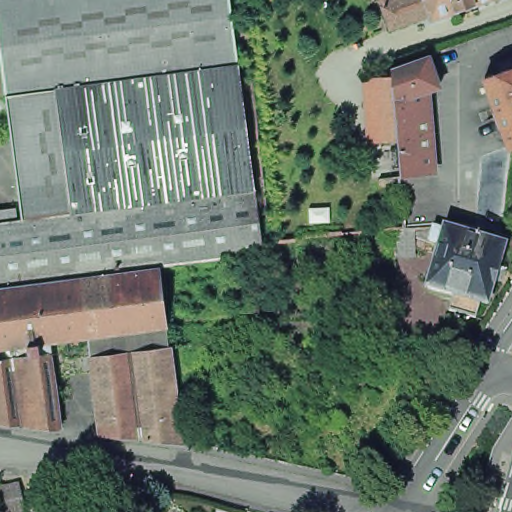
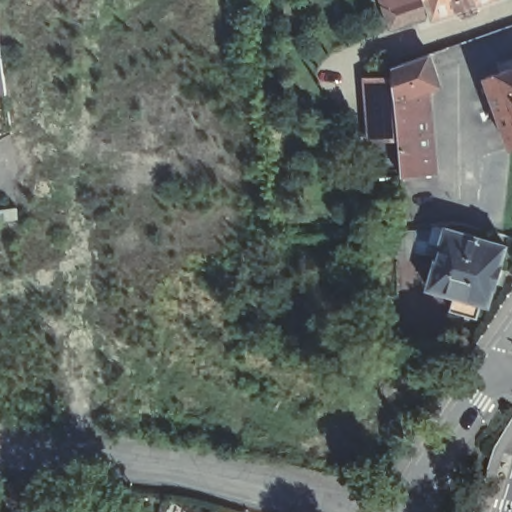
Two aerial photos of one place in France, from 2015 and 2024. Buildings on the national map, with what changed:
demolished [(240,69),(60,94),(10,101),(10,100),(7,100),(0,100),(0,0),(232,0),(240,69)]
demolished [(232,0),(233,0),(266,247),(268,257),(259,258),(252,192),(240,69),(232,0)]
unchanged [(435,12),(395,27),(386,0),(431,0),(435,12)]
unchanged [(437,16),(435,12),(431,0),(482,0),(437,16)]
unchanged [(400,179),(398,179),(396,142),(368,144),(367,126),(364,79),(392,77),(391,70),(391,69),(428,56),(429,57),(440,88),(431,91),(426,97),(431,154),(433,176),(400,179)]
unchanged [(489,75),(512,66),(512,142),(489,75)]
demolished [(240,69),(252,192),(75,215),(60,94),(240,69)]
demolished [(26,222),(75,215),(252,192),(259,258),(241,261),(236,262),(164,270),(157,271),(79,282),(0,292),(0,225),(26,222)]
unchanged [(442,225),(449,227),(450,225),(510,244),(504,262),(506,262),(499,285),(497,285),(492,303),(485,301),(480,318),(452,311),(457,293),(431,285),(444,242),(433,239),(437,225),(442,225)]
unchanged [(414,227),(415,253),(399,255),(398,229),(414,227)]
demolished [(79,282),(157,271),(164,270),(172,329),(92,340),(52,345),(0,351),(0,292),(79,282)]
demolished [(95,359),(92,340),(172,329),(174,349),(187,445),(186,445),(104,436),(95,359)]
demolished [(52,345),(64,432),(0,425),(0,351),(52,345)]
unchanged [(23,512),(0,512),(0,485),(16,482),(23,512)]

